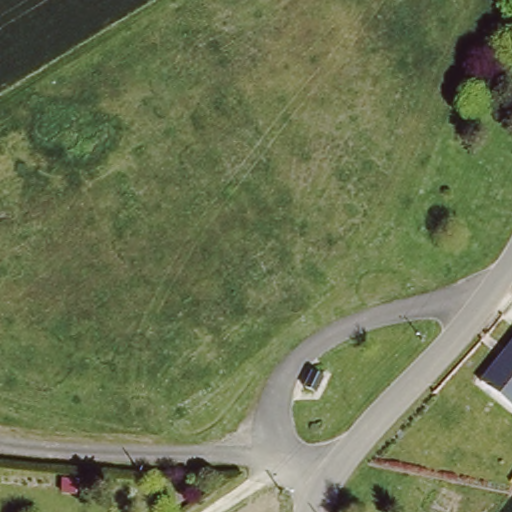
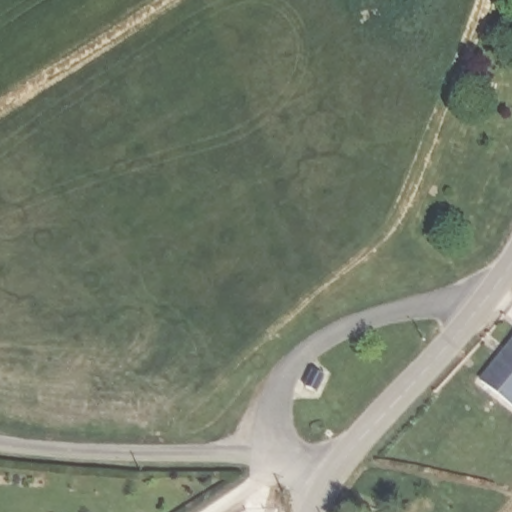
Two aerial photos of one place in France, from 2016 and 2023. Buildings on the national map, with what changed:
unchanged [(483,378),(512,344),(512,401),(483,378)]

